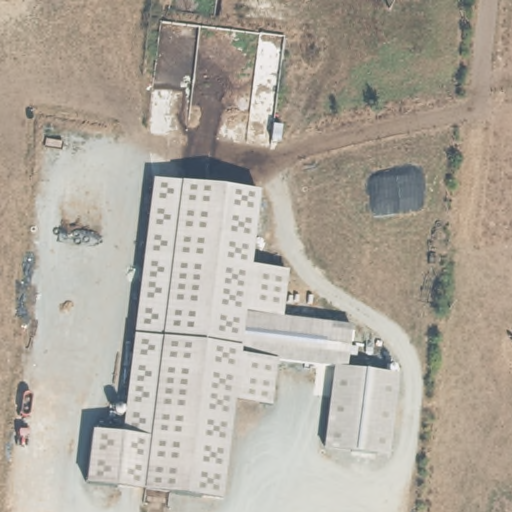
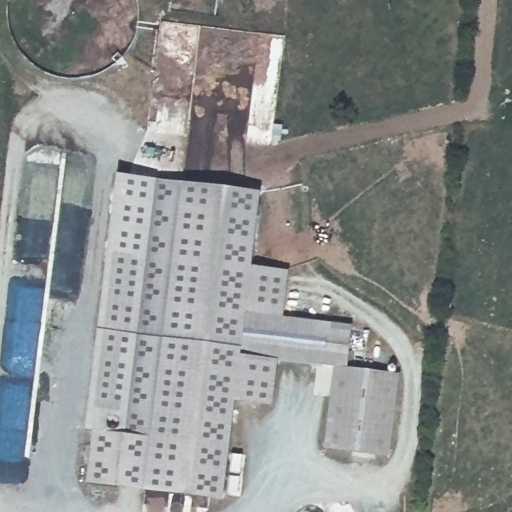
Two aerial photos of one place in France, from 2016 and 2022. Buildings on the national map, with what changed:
new [(132,337),(121,434),(92,432),(84,431),(116,177),(152,180),(132,337)]
unchanged [(258,194),(249,268),(287,273),(283,318),(351,326),(346,370),(331,369),(277,363),(272,408),(233,403),(221,503),(85,484),(92,432),(121,434),(132,337),(152,180),(258,194)]
unchanged [(346,370),(398,377),(387,458),(322,447),(331,369),(346,370)]

